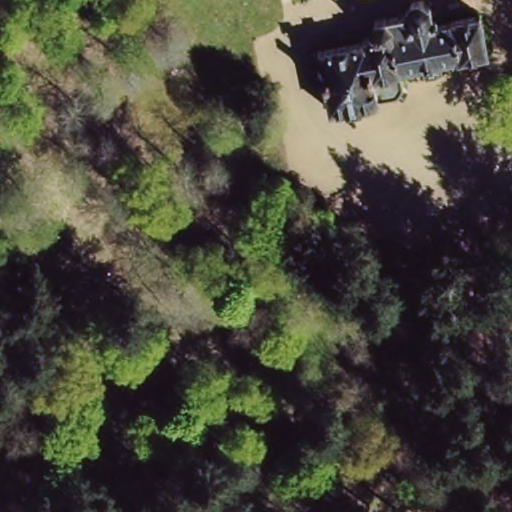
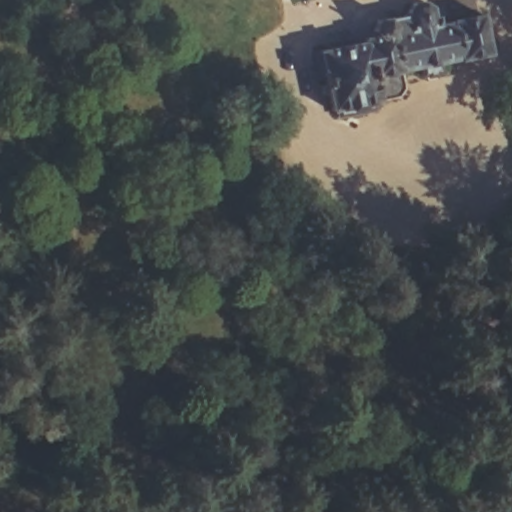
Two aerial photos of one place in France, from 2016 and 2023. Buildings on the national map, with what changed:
unchanged [(312,58),(321,56),(319,47),(365,35),(362,25),(398,15),(396,7),(420,1),(426,24),(469,13),(478,50),(394,70),(397,84),(369,89),(371,98),(344,104),(329,93),(323,67),(314,70),(312,58)]

